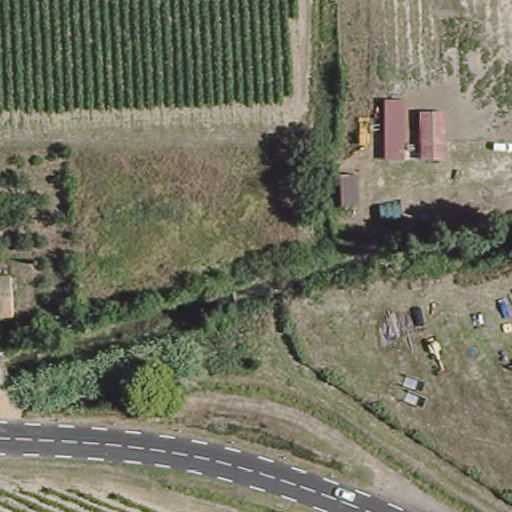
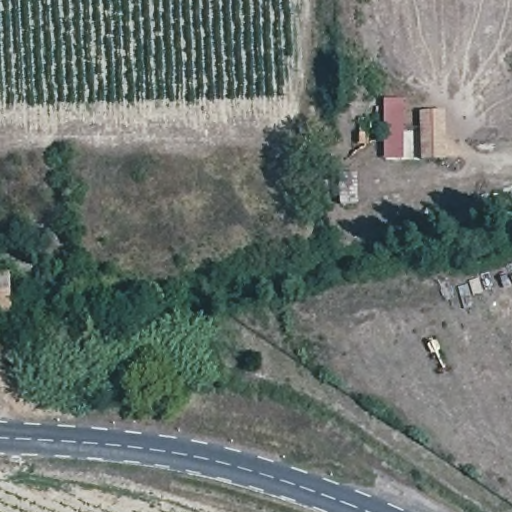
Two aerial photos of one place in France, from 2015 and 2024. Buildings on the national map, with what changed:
unchanged [(403,101),(401,156),(378,157),(380,99),(403,101)]
unchanged [(444,108),(445,161),(423,166),(421,108),(444,108)]
unchanged [(16,317),(0,318),(0,274),(14,273),(17,307),(16,317)]

